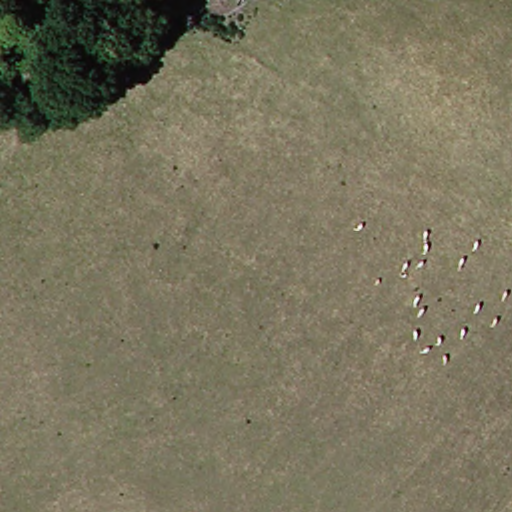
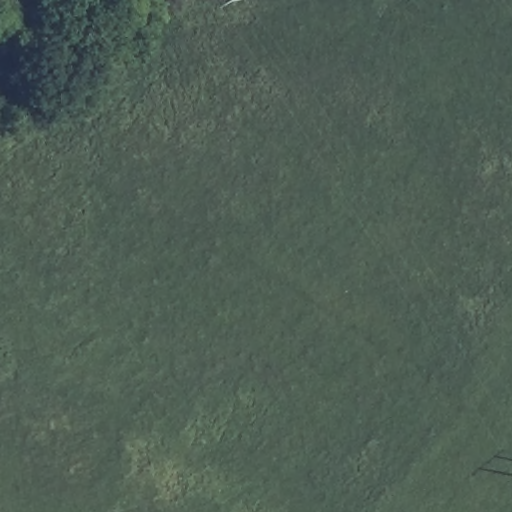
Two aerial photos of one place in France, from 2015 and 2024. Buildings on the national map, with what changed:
unchanged [(25,16),(25,77),(0,76),(0,11),(10,12),(10,16),(25,16)]

